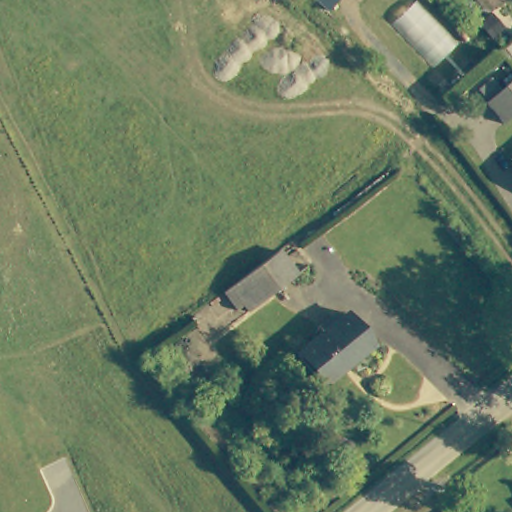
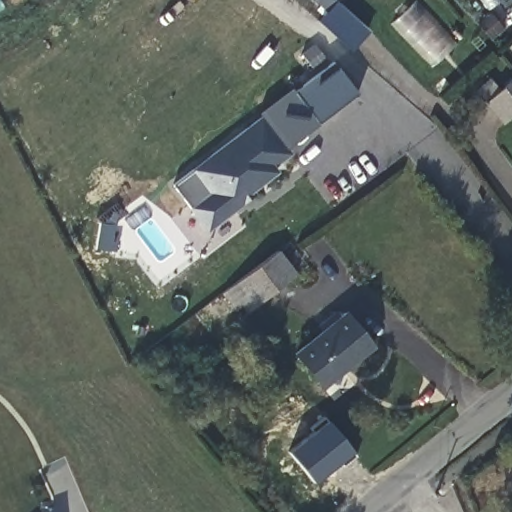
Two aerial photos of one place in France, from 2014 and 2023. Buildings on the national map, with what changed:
demolished [(325,9),(314,0),(333,0),(325,9)]
new [(353,51),(320,20),(329,11),(318,0),(339,0),(338,1),(371,31),(353,51)]
unchanged [(503,28),(492,38),(480,24),(491,14),(503,28)]
new [(359,93),(320,124),(295,91),(334,61),(359,93)]
unchanged [(512,80),(512,115),(502,123),(485,104),(512,80)]
new [(292,153),(275,167),(279,171),(255,190),(258,193),(210,231),(174,183),(263,114),(292,153)]
unchanged [(275,251),(293,276),(245,312),(226,288),(275,251)]
unchanged [(355,362),(351,357),(318,384),(294,354),(344,314),(372,348),(355,362)]

